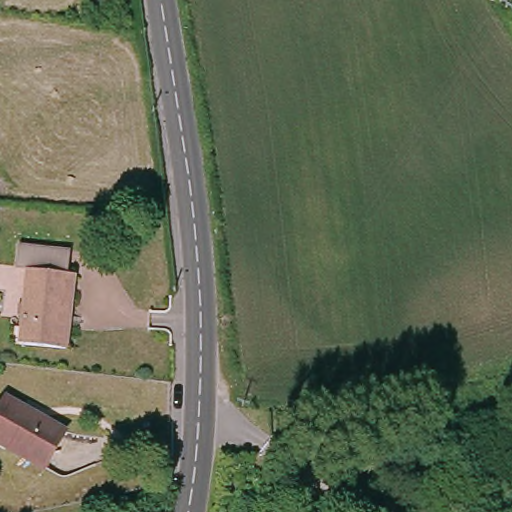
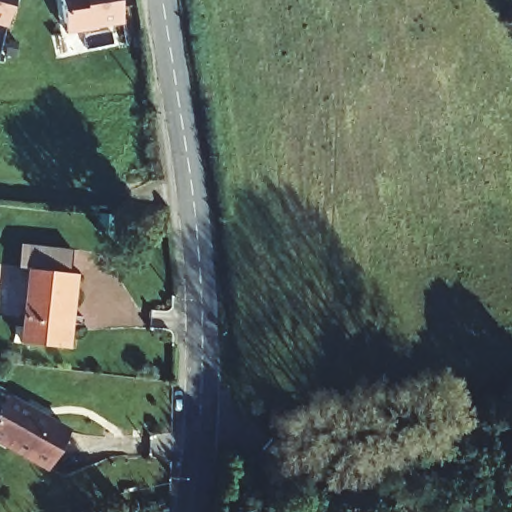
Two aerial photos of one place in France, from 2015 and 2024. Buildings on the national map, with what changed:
new [(3,29),(0,28),(0,0),(11,0),(3,29)]
new [(126,27),(67,37),(61,0),(122,0),(126,27)]
unchanged [(30,262),(70,267),(63,341),(22,337),(30,262)]
unchanged [(4,395),(65,430),(43,467),(0,441),(0,402),(4,395)]

